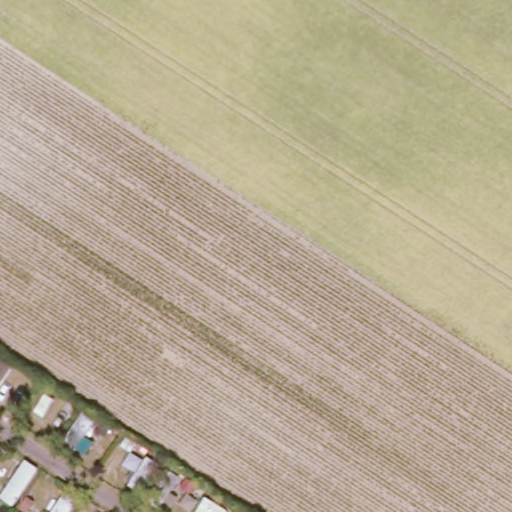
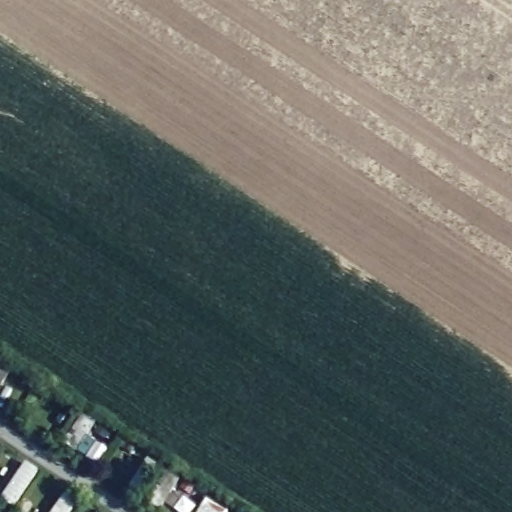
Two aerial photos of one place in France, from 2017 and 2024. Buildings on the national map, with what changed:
unchanged [(0,376),(0,366),(5,369),(0,376)]

